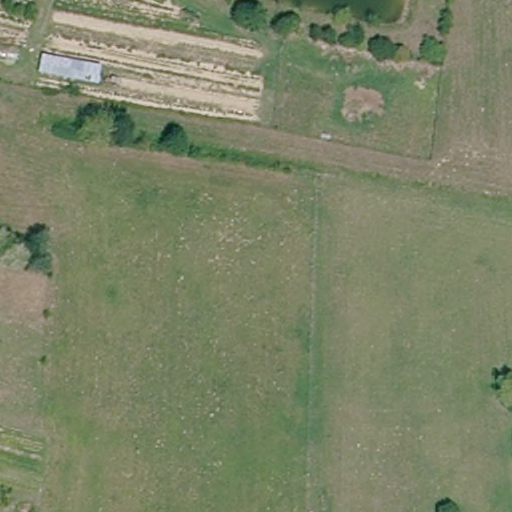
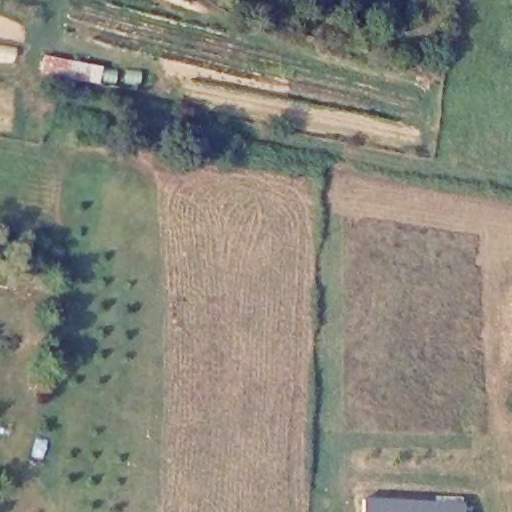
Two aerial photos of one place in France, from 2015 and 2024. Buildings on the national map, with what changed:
new [(467,498),(466,512),(362,512),(362,497),(467,498)]

